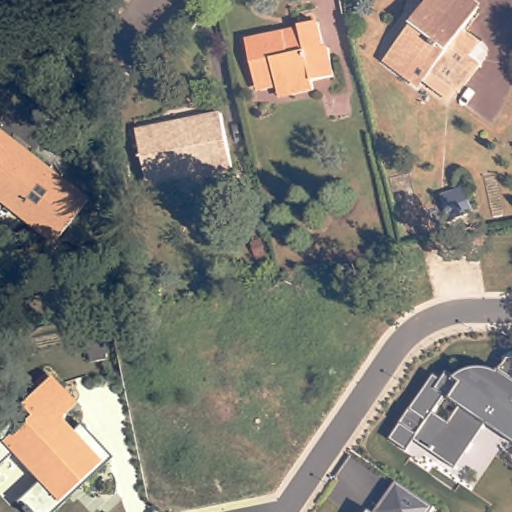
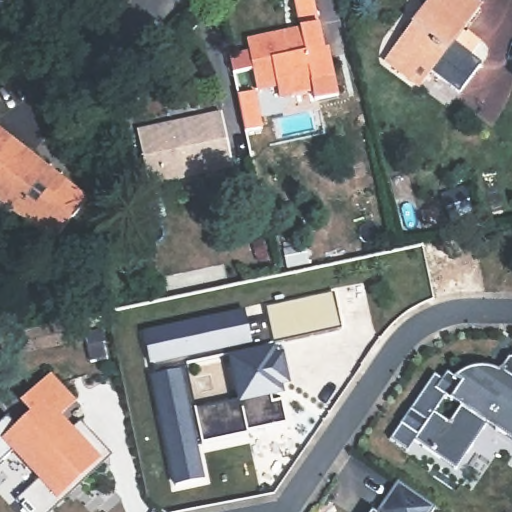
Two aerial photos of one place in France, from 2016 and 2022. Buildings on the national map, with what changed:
unchanged [(431,0),(468,0),(479,8),(462,30),(467,34),(469,31),(482,41),(470,56),(480,64),(458,92),(450,86),(443,95),(422,80),(417,88),(384,62),(398,45),(431,0)]
unchanged [(276,83),(256,86),(248,39),(286,32),(287,39),(303,36),(302,28),(321,24),(325,49),(329,49),(334,80),(312,84),(313,93),(291,96),(279,99),(276,83)]
unchanged [(230,170),(148,186),(139,134),(178,126),(193,123),(220,117),(230,170)]
unchanged [(61,183),(90,205),(56,247),(28,225),(0,203),(0,133),(51,174),(61,183)]
new [(245,314),(248,327),(268,323),(265,310),(334,295),(342,330),(265,346),(266,353),(274,359),(281,395),(270,397),(272,404),(282,402),(287,425),(248,434),(249,436),(202,446),(201,442),(195,443),(203,480),(176,486),(151,365),(152,364),(150,352),(148,353),(144,336),(245,314)]
unchanged [(486,425),(457,468),(415,441),(408,451),(392,439),(412,410),(434,375),(442,380),(448,372),(456,378),(462,373),(472,369),(483,368),(493,369),(502,370),(509,357),(512,357),(512,441),(486,425)]
unchanged [(18,499),(39,480),(12,452),(0,463),(0,424),(8,417),(17,426),(30,415),(20,404),(51,374),(77,402),(61,417),(74,429),(81,422),(111,456),(51,512),(30,512),(18,499)]
unchanged [(435,504),(429,512),(376,512),(398,480),(435,504)]
unchanged [(367,508),(373,512),(363,512),(367,508)]

